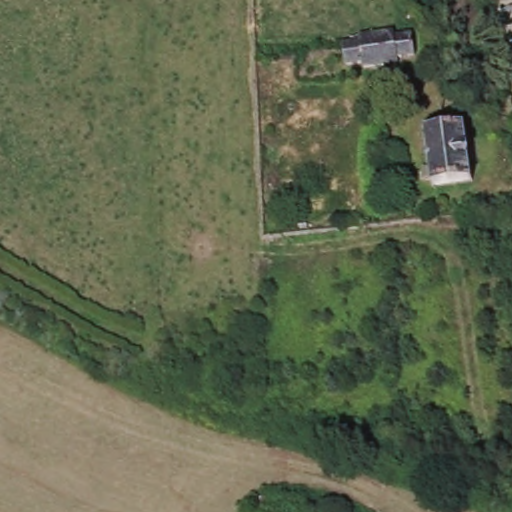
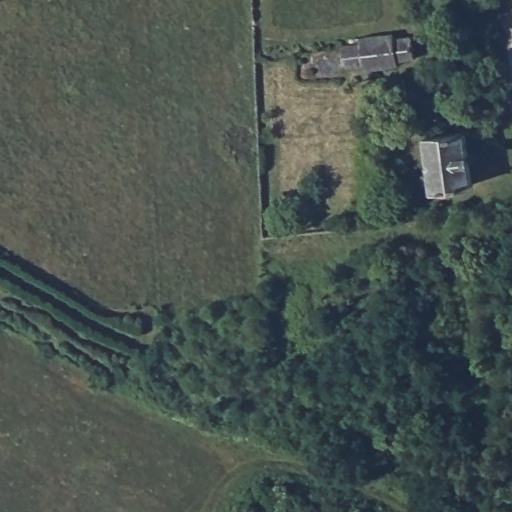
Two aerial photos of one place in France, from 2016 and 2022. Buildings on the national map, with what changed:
unchanged [(357,40),(357,35),(391,31),(392,36),(409,34),(412,57),(395,59),(396,64),(373,67),(362,68),(361,64),(344,66),(341,42),(357,40)]
unchanged [(459,131),(466,183),(427,189),(419,136),(459,131)]

